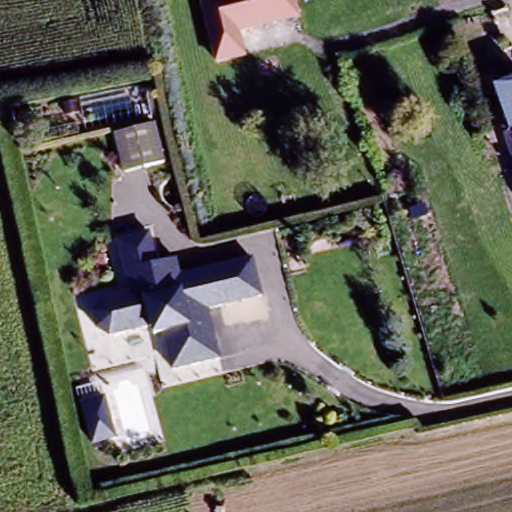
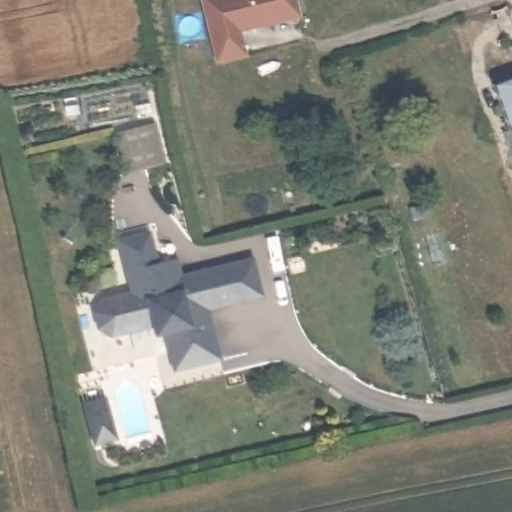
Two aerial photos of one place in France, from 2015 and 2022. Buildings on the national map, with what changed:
unchanged [(299,21),(242,33),(245,57),(212,64),(198,0),(296,0),(299,21)]
unchanged [(494,91),(512,86),(512,142),(494,91)]
unchanged [(264,300),(210,313),(220,365),(165,377),(154,330),(106,343),(99,302),(127,291),(116,243),(149,235),(156,265),(182,260),(183,275),(255,258),(264,300)]
unchanged [(116,442),(93,451),(80,404),(106,399),(116,442)]

